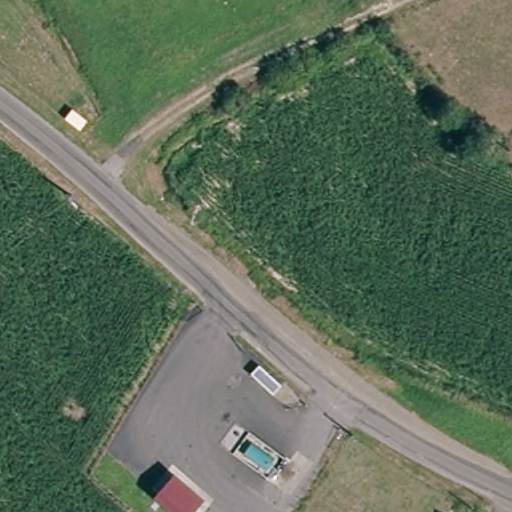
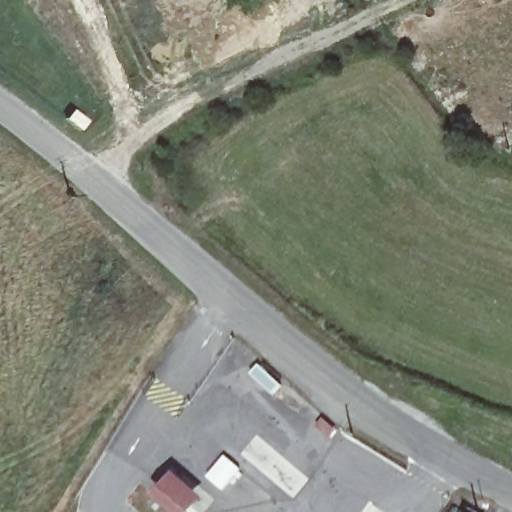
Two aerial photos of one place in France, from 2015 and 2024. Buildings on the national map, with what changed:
unchanged [(180,474),(208,498),(195,512),(173,512),(155,496),(180,474)]

